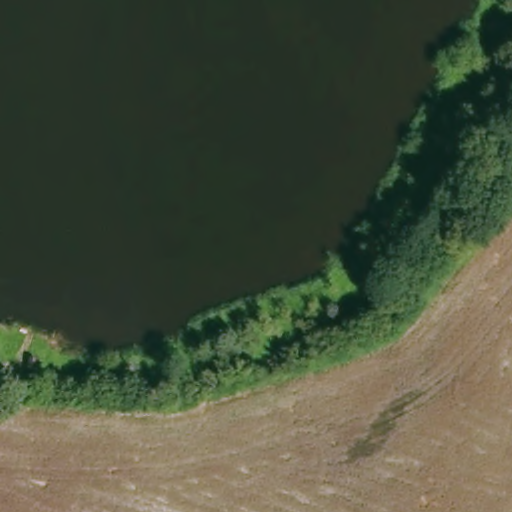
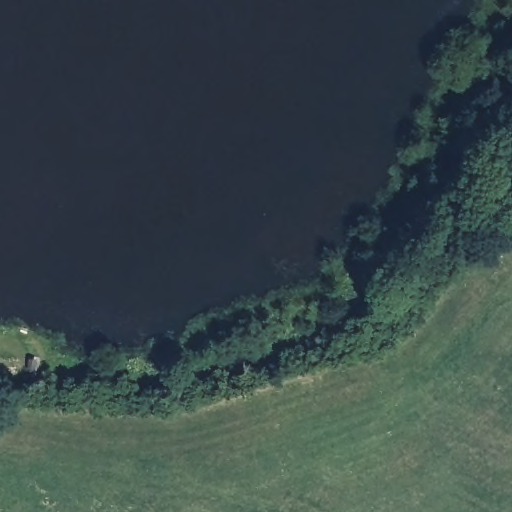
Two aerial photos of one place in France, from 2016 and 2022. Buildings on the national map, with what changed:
unchanged [(31,367),(38,353),(51,359),(45,373),(39,370),(31,367)]

